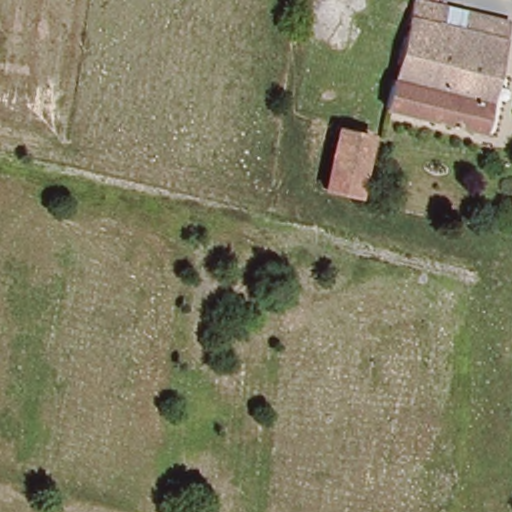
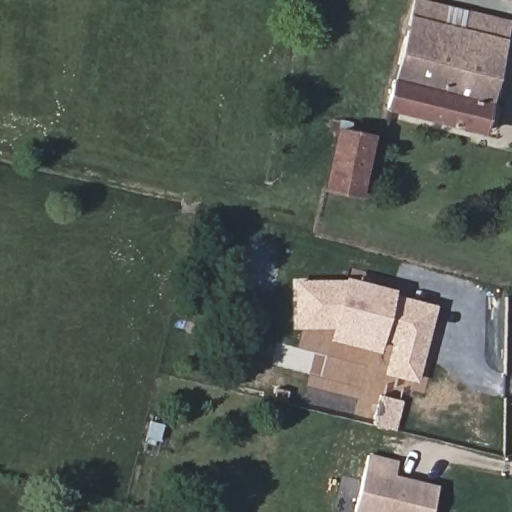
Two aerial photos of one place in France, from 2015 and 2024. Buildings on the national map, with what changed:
unchanged [(479,131),(389,109),(416,0),(424,0),(502,19),(479,131)]
unchanged [(371,134),(361,192),(329,187),(339,127),(371,134)]
new [(417,382),(383,374),(392,342),(383,340),(379,353),(330,340),(333,325),(294,328),(293,280),(344,279),(345,276),(395,289),(394,294),(436,305),(417,382)]
new [(366,469),(368,454),(398,460),(396,476),(439,484),(432,512),(354,512),(366,469)]

